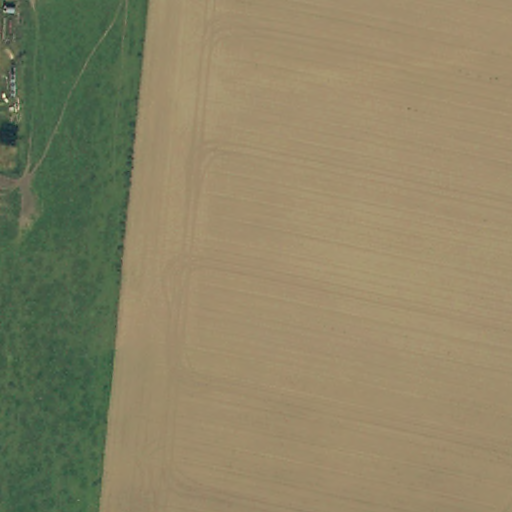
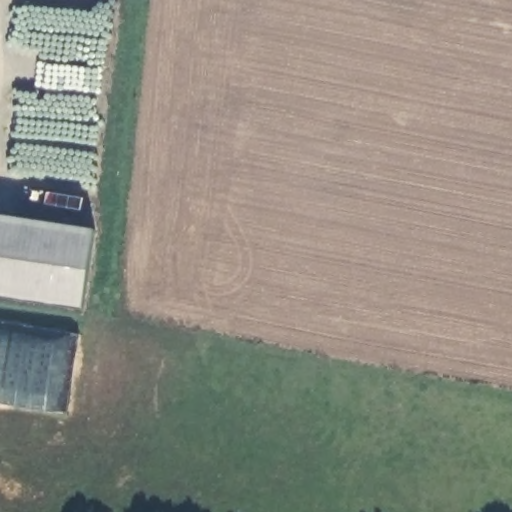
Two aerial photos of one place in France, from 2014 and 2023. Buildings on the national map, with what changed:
new [(0,296),(0,214),(95,229),(84,308),(0,296)]

